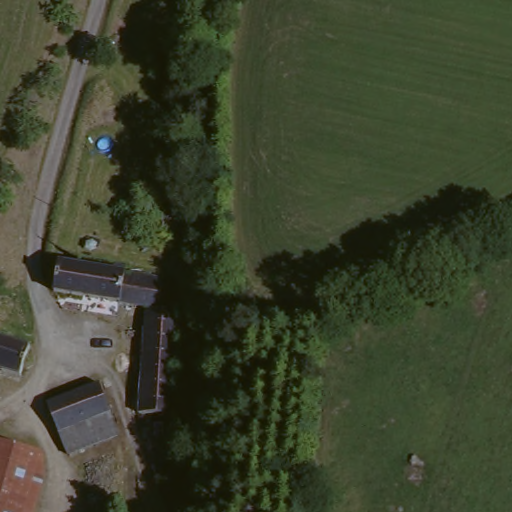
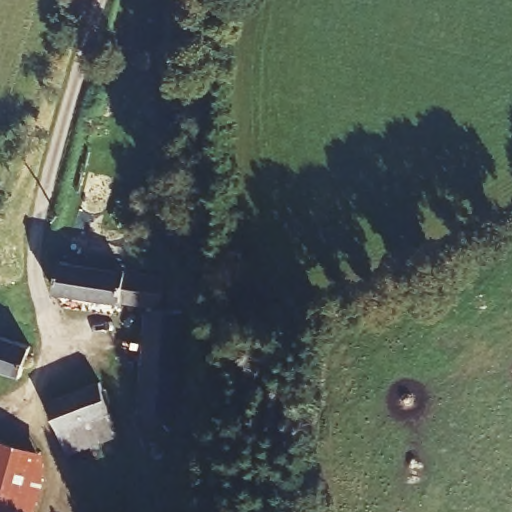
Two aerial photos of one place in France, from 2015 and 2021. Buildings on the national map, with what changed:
unchanged [(53,290),(56,271),(58,261),(163,278),(158,307),(53,290)]
unchanged [(143,361),(146,309),(180,311),(176,362),(143,361)]
unchanged [(26,345),(29,346),(19,376),(0,370),(0,323),(29,332),(26,345)]
unchanged [(143,361),(176,362),(173,416),(139,413),(143,361)]
unchanged [(59,433),(48,402),(98,384),(109,414),(59,433)]
unchanged [(68,455),(59,433),(109,414),(118,436),(68,455)]
unchanged [(33,493),(0,486),(0,447),(39,454),(33,493)]
unchanged [(29,512),(0,512),(0,486),(33,493),(29,512)]

